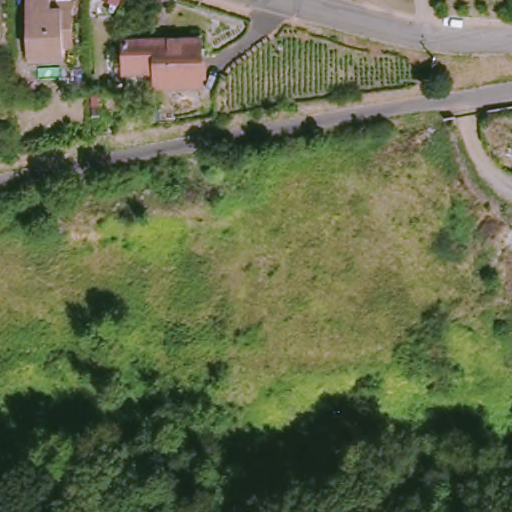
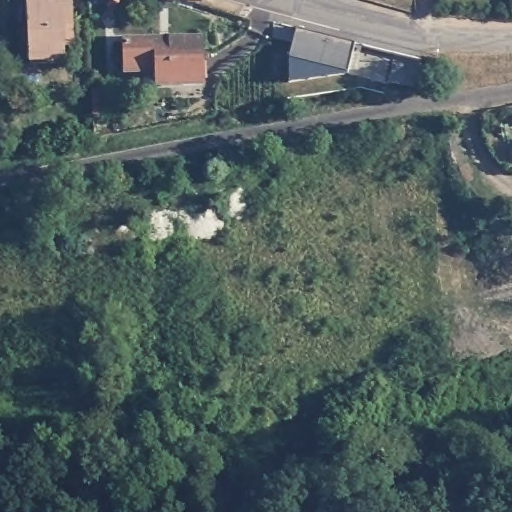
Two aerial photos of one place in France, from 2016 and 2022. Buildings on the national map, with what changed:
unchanged [(60,35),(61,57),(26,60),(24,0),(46,0),(46,6),(67,6),(69,35),(60,35)]
new [(355,44),(348,72),(290,82),(290,59),(297,29),(355,44)]
unchanged [(158,90),(157,72),(126,74),(125,43),(198,39),(200,87),(158,90)]

